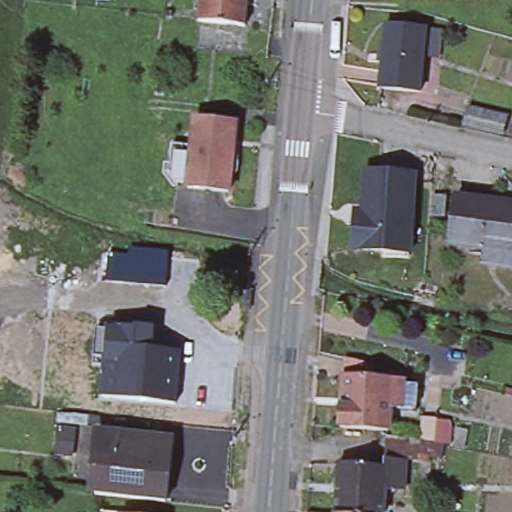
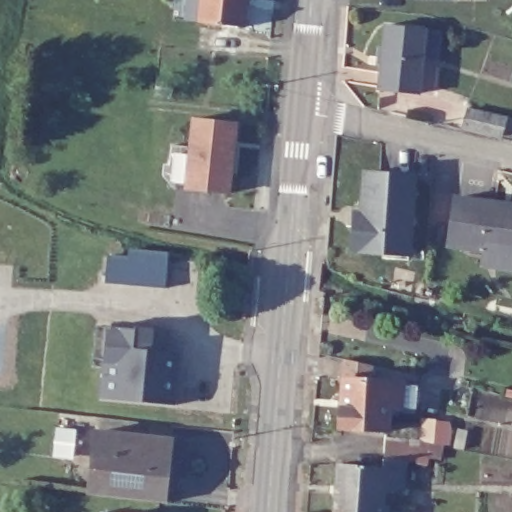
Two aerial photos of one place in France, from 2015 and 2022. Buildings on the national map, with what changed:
unchanged [(200,19),(203,0),(249,0),(247,25),(200,19)]
unchanged [(425,27),(418,93),(378,88),(386,23),(425,27)]
unchanged [(504,112),(498,130),(459,121),(464,103),(504,112)]
unchanged [(177,171),(180,142),(200,145),(203,116),(243,120),(237,191),(195,186),(196,181),(184,180),(177,171)]
unchanged [(357,254),(357,245),(359,214),(365,214),(367,173),(418,177),(412,255),(377,255),(357,254)]
unchanged [(482,247),(447,242),(455,194),(512,203),(512,267),(480,262),(482,247)]
unchanged [(168,254),(165,287),(125,283),(129,248),(168,254)]
unchanged [(138,350),(131,400),(105,397),(110,362),(97,361),(99,340),(83,339),(86,316),(102,317),(100,326),(114,328),(140,331),(138,350)]
unchanged [(184,356),(180,405),(131,400),(138,350),(184,356)]
unchanged [(410,381),(409,407),(384,405),(382,429),(335,427),(338,377),(340,356),(368,363),(367,379),(385,380),(410,381)]
unchanged [(171,438),(163,501),(92,493),(95,465),(90,465),(94,431),(171,438)]
unchanged [(377,512),(367,512),(328,510),(332,461),(378,464),(379,458),(381,435),(382,433),(413,438),(438,442),(437,445),(436,457),(411,453),(410,460),(400,459),(397,489),(378,488),(377,512)]
unchanged [(127,512),(121,512),(122,511),(127,512)]

